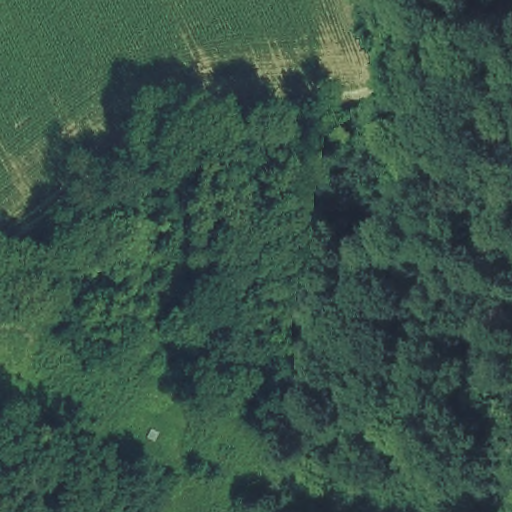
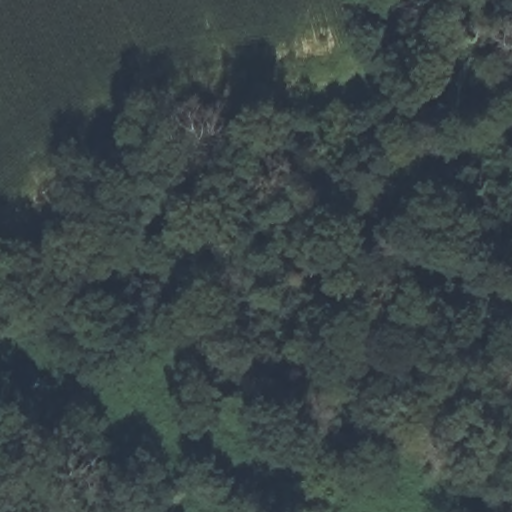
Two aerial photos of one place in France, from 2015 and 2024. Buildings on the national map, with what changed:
unchanged [(307,500),(342,512),(304,512),(307,500)]

